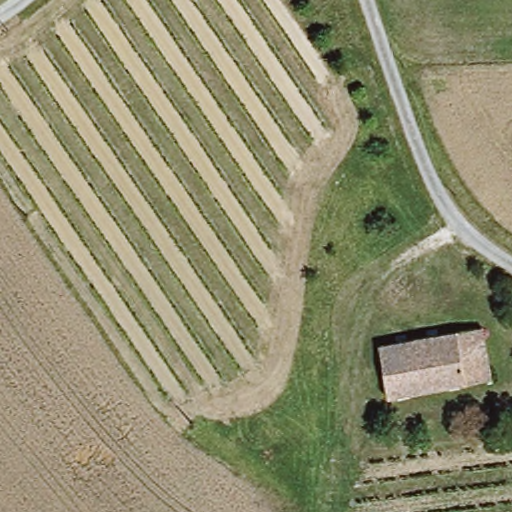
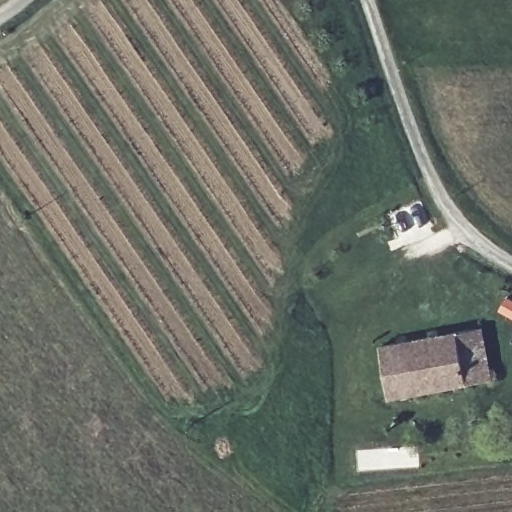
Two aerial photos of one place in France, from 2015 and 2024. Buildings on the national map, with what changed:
unchanged [(494,377),(390,397),(379,345),(493,323),(496,336),(487,337),(494,377)]

